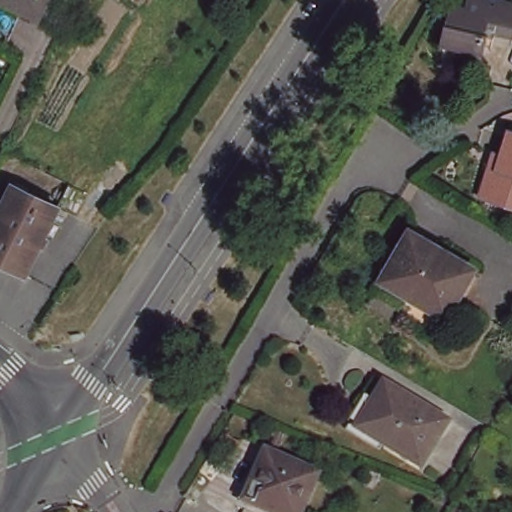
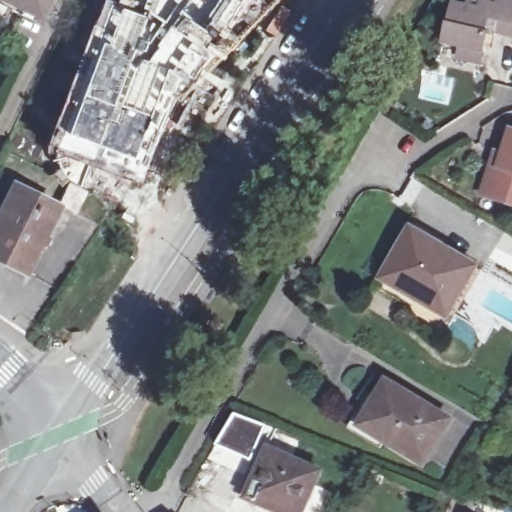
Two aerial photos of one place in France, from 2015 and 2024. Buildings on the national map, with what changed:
unchanged [(2,0),(50,0),(40,19),(2,0)]
new [(100,0),(108,0),(113,3),(115,0),(240,0),(238,2),(220,28),(211,21),(205,30),(213,36),(206,50),(211,54),(157,130),(139,170),(95,148),(91,159),(53,147),(60,131),(52,127),(77,58),(100,0)]
unchanged [(481,29),(481,27),(473,25),(465,54),(444,49),(446,43),(429,39),(439,1),(451,3),(451,0),(504,0),(496,33),(481,29)]
new [(281,4),(294,13),(278,39),(264,30),(281,4)]
unchanged [(487,197),(496,166),(504,169),(512,141),(512,204),(487,197)]
unchanged [(24,272),(0,259),(0,208),(13,181),(59,203),(24,272)]
unchanged [(473,267),(447,312),(386,276),(413,233),(473,267)]
unchanged [(446,423),(420,465),(356,428),(383,386),(446,423)]
unchanged [(313,477),(297,512),(290,512),(255,497),(258,490),(246,485),(261,454),(313,477)]

